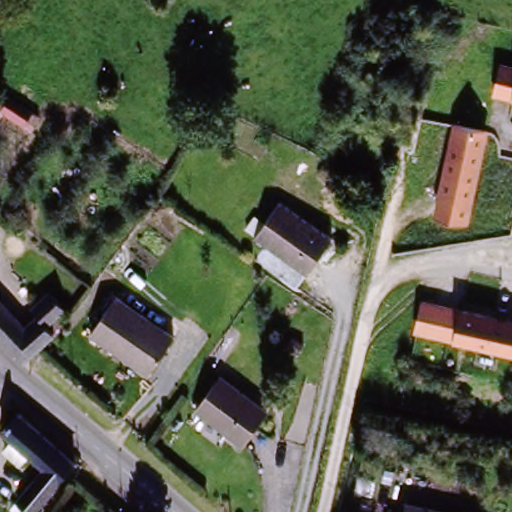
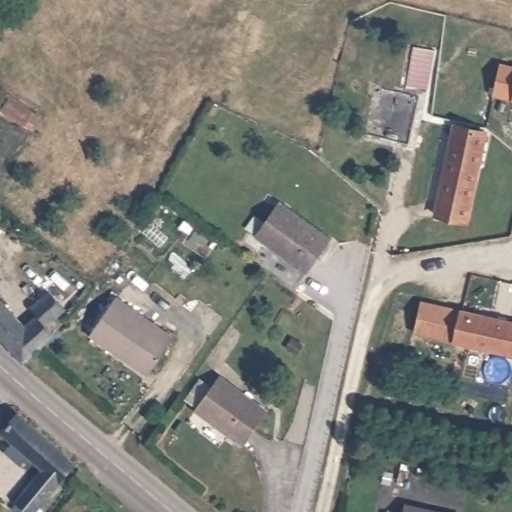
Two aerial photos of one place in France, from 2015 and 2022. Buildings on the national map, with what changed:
unchanged [(500,63),(512,65),(512,101),(492,98),(500,63)]
unchanged [(41,129),(7,108),(15,95),(49,116),(41,129)]
unchanged [(433,217),(453,124),(489,131),(469,224),(433,217)]
unchanged [(305,273),(256,236),(282,201),(331,238),(305,273)]
unchanged [(50,291),(67,311),(46,328),(29,308),(50,291)]
unchanged [(0,338),(0,300),(20,325),(31,316),(51,343),(23,366),(0,338)]
unchanged [(452,342),(414,334),(421,300),(460,308),(512,320),(512,356),(452,342)]
unchanged [(93,338),(118,304),(173,344),(148,378),(93,338)]
unchanged [(268,416),(245,449),(200,416),(223,383),(268,416)]
unchanged [(20,413),(78,468),(59,488),(58,487),(34,512),(25,512),(17,504),(45,474),(1,433),(20,413)]
unchanged [(416,512),(407,512),(407,510),(416,512)]

